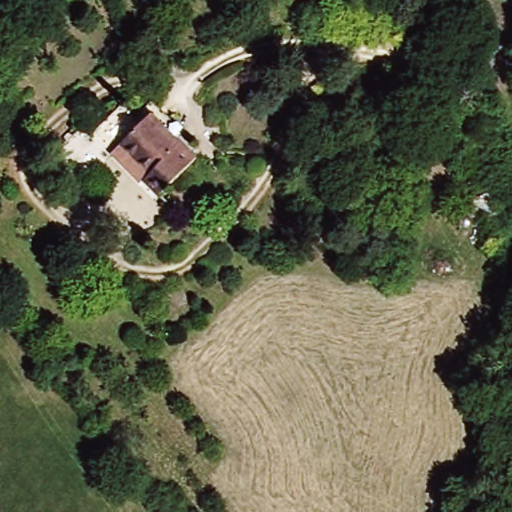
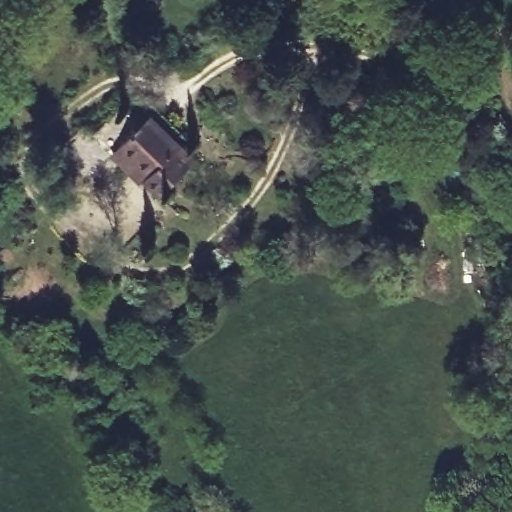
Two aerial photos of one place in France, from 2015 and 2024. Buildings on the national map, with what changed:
unchanged [(121,147),(152,116),(198,164),(158,202),(143,185),(140,188),(110,157),(121,147)]

